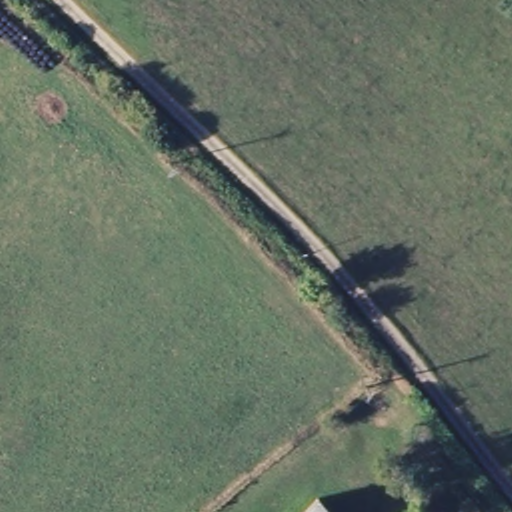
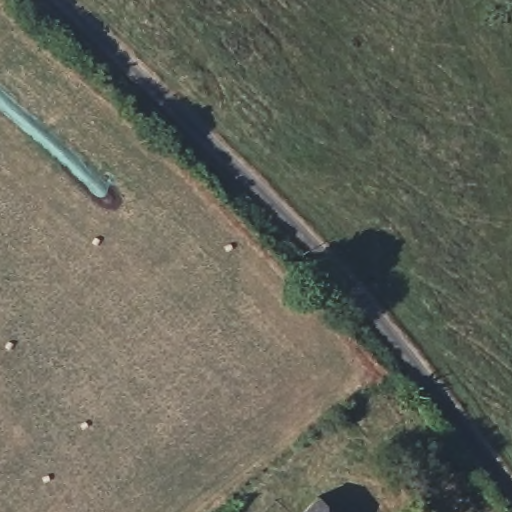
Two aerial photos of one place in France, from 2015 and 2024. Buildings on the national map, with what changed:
unchanged [(337,512),(301,512),(321,489),(337,512)]

